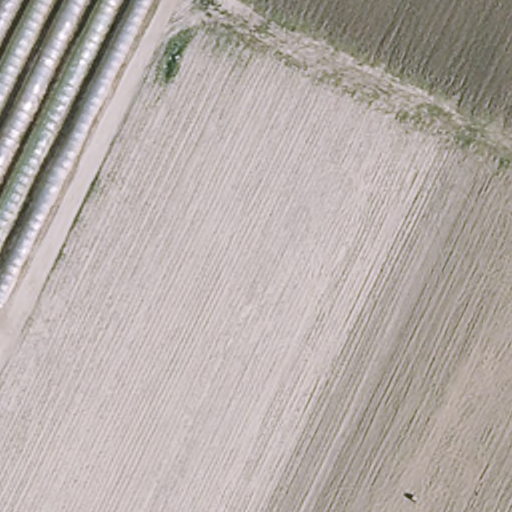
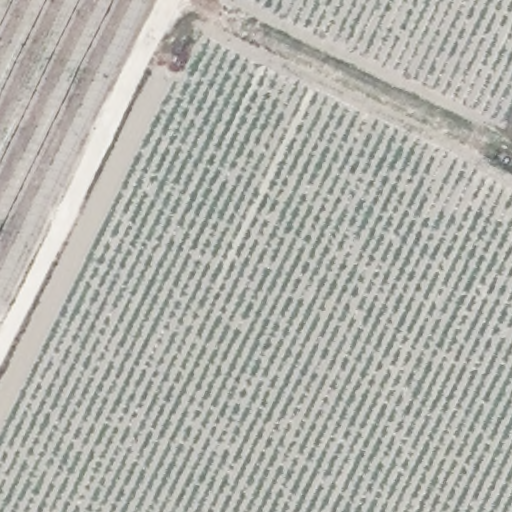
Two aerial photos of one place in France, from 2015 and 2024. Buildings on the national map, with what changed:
unchanged [(0,300),(0,0),(147,0),(1,300),(0,300)]

